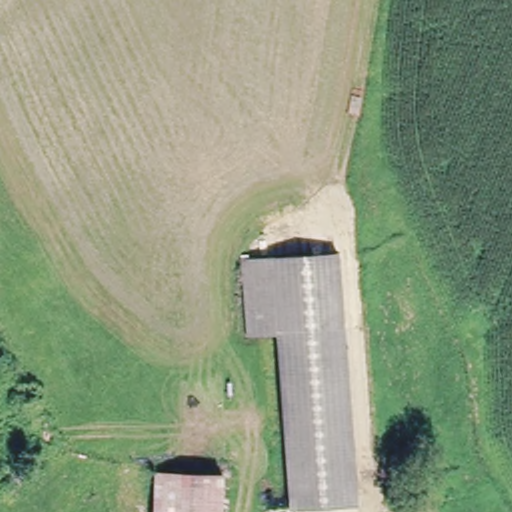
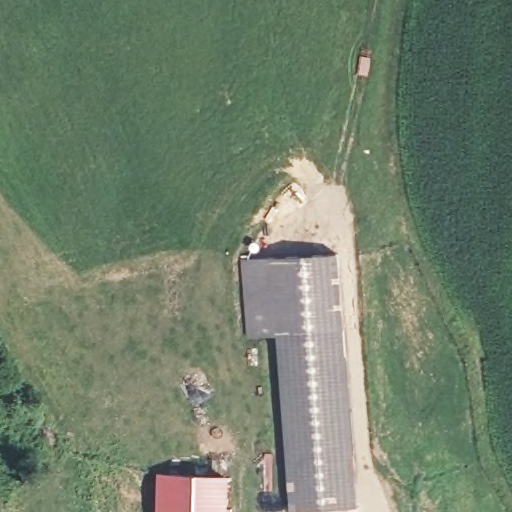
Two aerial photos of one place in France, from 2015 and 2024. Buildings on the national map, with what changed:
unchanged [(367,498),(302,506),(279,333),(250,336),(242,262),(334,251),(367,498)]
unchanged [(225,475),(223,512),(155,512),(158,470),(225,475)]

